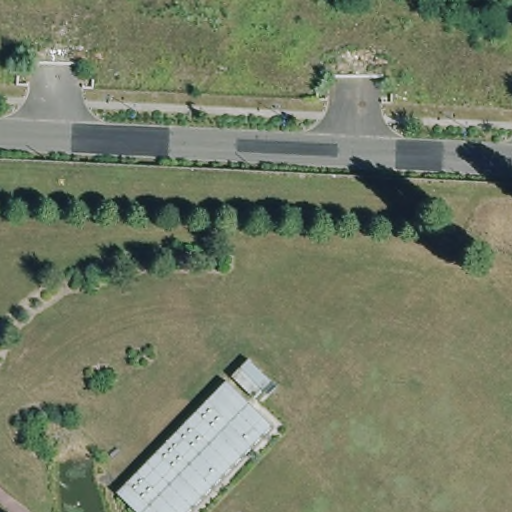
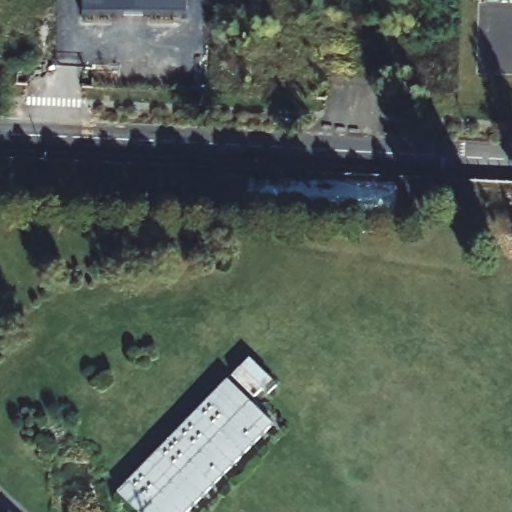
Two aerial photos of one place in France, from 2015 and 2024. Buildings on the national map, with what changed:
new [(83,17),(83,0),(184,0),(184,17),(83,17)]
new [(482,1),(482,0),(512,0),(512,2),(482,1)]
unchanged [(222,377),(267,422),(178,512),(134,512),(110,488),(222,377)]

